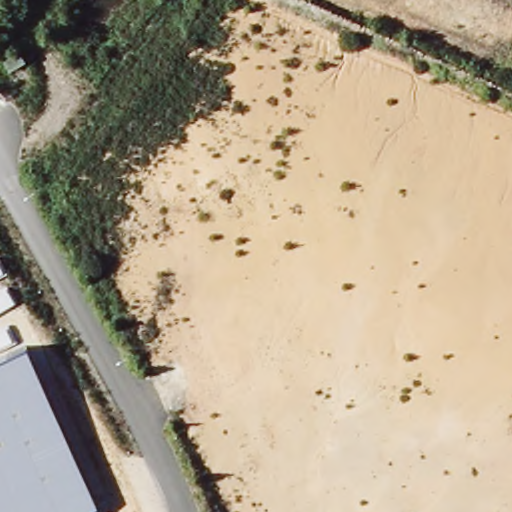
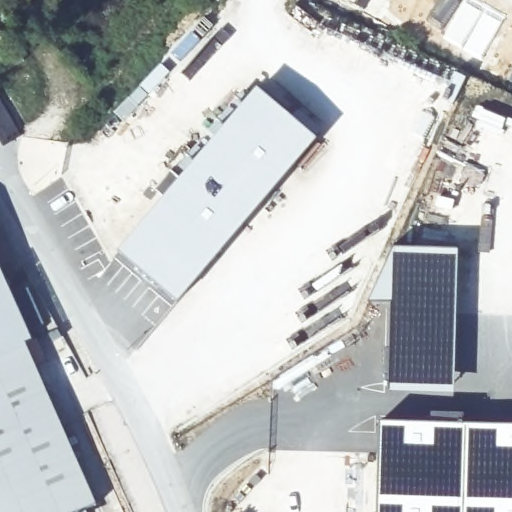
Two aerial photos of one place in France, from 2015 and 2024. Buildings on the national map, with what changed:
new [(177,301),(118,251),(259,87),(317,139),(177,301)]
new [(374,290),(392,246),(460,248),(455,387),(388,388),(392,302),(370,302),(374,290)]
new [(33,340),(27,342),(0,354),(0,266),(33,340)]
unchanged [(27,342),(95,502),(74,512),(0,512),(0,354),(27,342)]
new [(380,422),(512,425),(512,512),(378,512),(380,422)]

